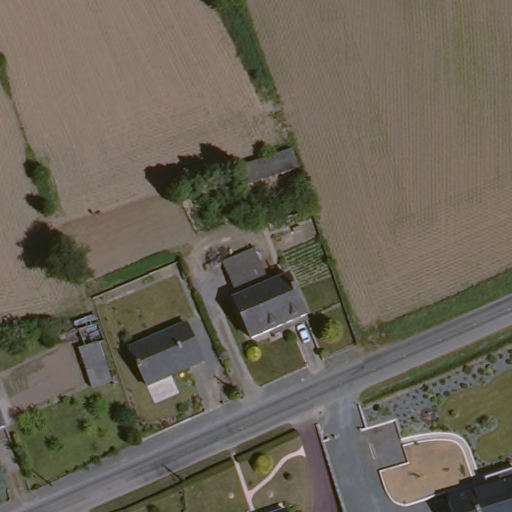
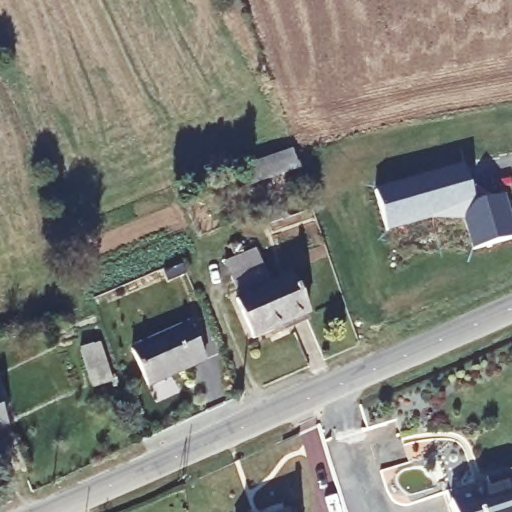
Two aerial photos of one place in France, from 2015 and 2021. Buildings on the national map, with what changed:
unchanged [(295,171),(248,189),(242,172),(289,155),(295,171)]
new [(466,164),(477,202),(505,194),(512,218),(512,237),(475,248),(466,216),(437,214),(388,228),(377,189),(466,164)]
unchanged [(259,266),(267,287),(237,299),(229,278),(259,266)]
unchanged [(286,285),(300,322),(245,343),(231,306),(286,285)]
unchanged [(84,387),(71,348),(76,347),(67,320),(92,312),(101,339),(95,341),(107,380),(84,387)]
unchanged [(184,333),(197,368),(139,391),(125,355),(184,333)]
unchanged [(0,436),(0,426),(3,435),(0,436)]
unchanged [(487,480),(512,468),(512,512),(454,512),(450,499),(484,486),(487,480)]

